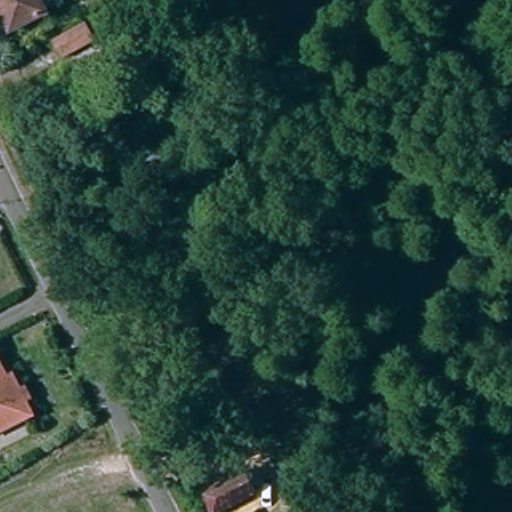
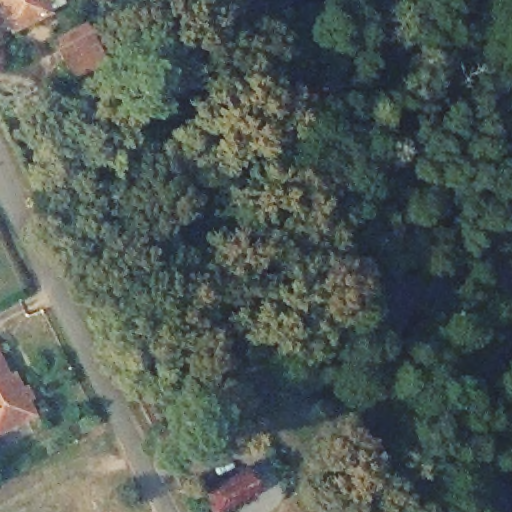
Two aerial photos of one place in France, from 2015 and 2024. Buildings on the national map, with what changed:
unchanged [(48,10),(9,30),(0,11),(0,0),(43,0),(48,10)]
unchanged [(79,22),(85,38),(53,54),(45,38),(79,22)]
unchanged [(10,381),(16,377),(36,417),(0,436),(0,359),(10,381)]
unchanged [(258,490),(215,512),(202,490),(245,465),(258,490)]

